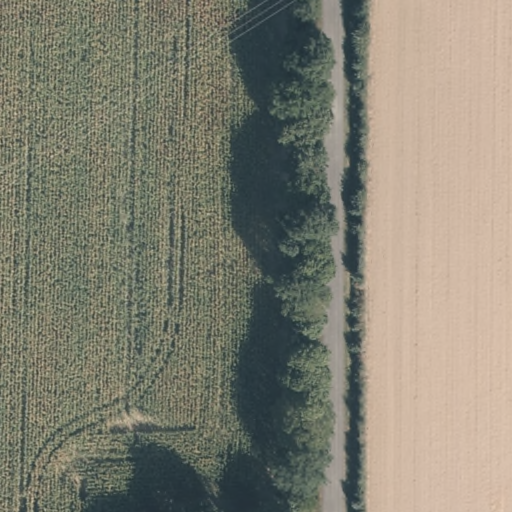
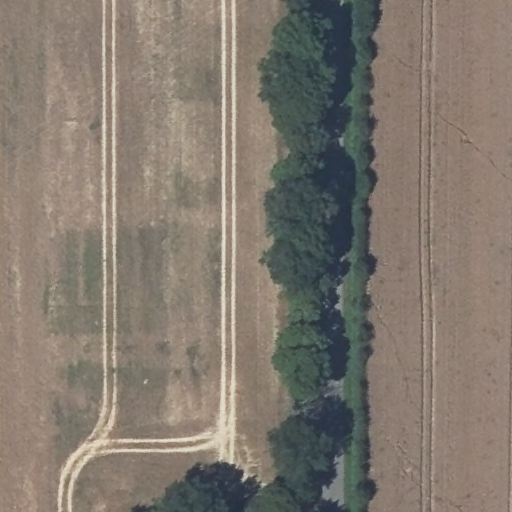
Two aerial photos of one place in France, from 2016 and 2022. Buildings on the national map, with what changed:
[]

